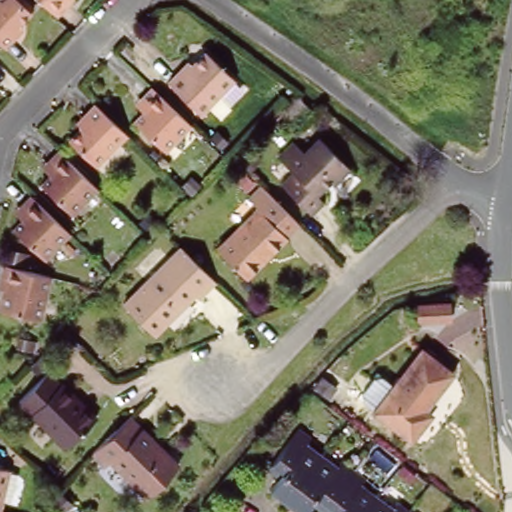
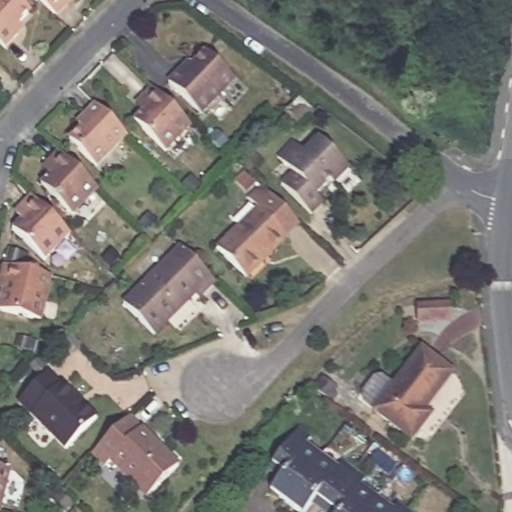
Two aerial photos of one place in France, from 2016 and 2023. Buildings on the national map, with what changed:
unchanged [(7,48),(0,41),(0,0),(23,0),(32,9),(20,24),(25,29),(18,35),(7,48)]
unchanged [(53,14),(39,0),(69,0),(65,4),(53,14)]
unchanged [(229,80),(200,110),(170,81),(181,69),(187,63),(192,68),(204,56),(229,80)]
unchanged [(135,125),(146,114),(138,106),(142,103),(154,91),(192,129),(167,155),(135,125)]
unchanged [(292,104),(297,99),(310,110),(297,123),(285,110),(292,104)]
unchanged [(73,143),(84,132),(78,127),(85,120),(98,107),(128,138),(98,168),(73,143)]
unchanged [(352,169),(337,184),(334,180),(318,195),(325,202),(313,214),(285,184),(297,172),(282,156),(297,141),(308,153),(323,139),(352,169)]
unchanged [(42,186),(52,177),(45,169),(50,164),(61,154),(98,189),(72,216),(42,186)]
unchanged [(300,222),(287,235),(288,237),(250,276),(222,247),(260,208),(251,198),(263,184),(300,222)]
unchanged [(12,230),(22,222),(13,214),(19,208),(30,198),(67,235),(42,260),(12,230)]
unchanged [(213,276),(196,293),(193,289),(152,329),(122,298),(180,241),(213,276)]
unchanged [(2,312),(6,293),(1,292),(3,282),(7,267),(53,279),(42,323),(2,312)]
unchanged [(449,310),(447,328),(416,324),(417,308),(449,310)]
unchanged [(455,373),(428,409),(434,414),(417,438),(368,402),(367,391),(377,377),(386,376),(400,386),(425,351),(455,373)]
unchanged [(94,412),(63,442),(19,396),(48,366),(94,412)]
unchanged [(182,460),(152,492),(115,456),(109,461),(97,448),(133,411),(182,460)]
unchanged [(310,502),(302,512),(301,512),(271,488),(280,477),(268,468),(273,462),(301,427),(312,437),(308,441),(339,465),(343,461),(367,479),(362,483),(393,508),(398,503),(409,512),(324,512),(310,502)]
unchanged [(3,512),(1,512),(0,512),(0,465),(12,468),(3,512)]
unchanged [(210,507),(221,512),(208,512),(210,507)]

